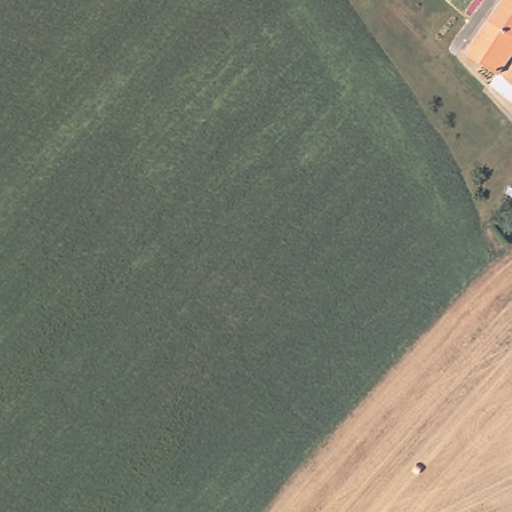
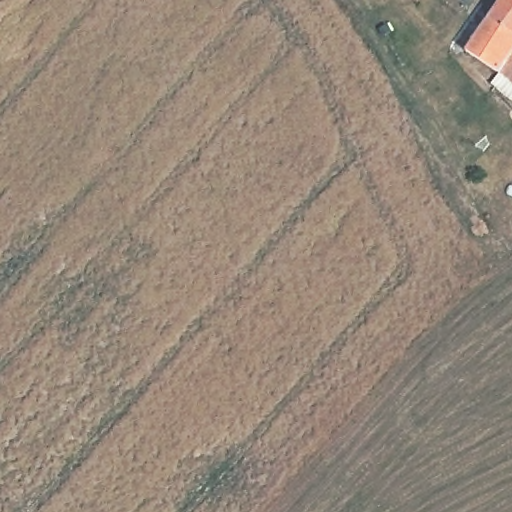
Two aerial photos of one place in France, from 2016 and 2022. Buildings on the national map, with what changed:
unchanged [(498,67),(465,47),(494,0),(512,0),(512,45),(498,67)]
unchanged [(498,67),(512,45),(512,79),(498,67)]

